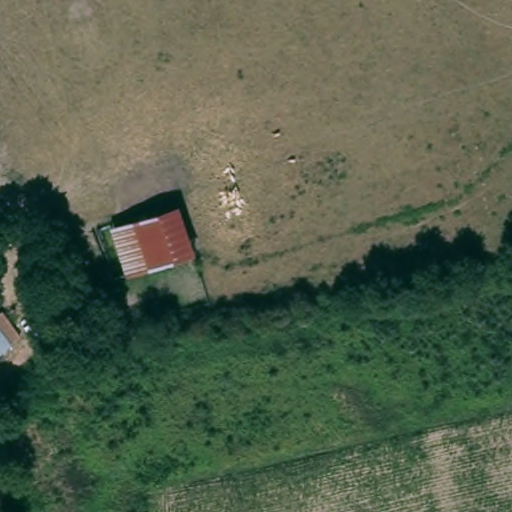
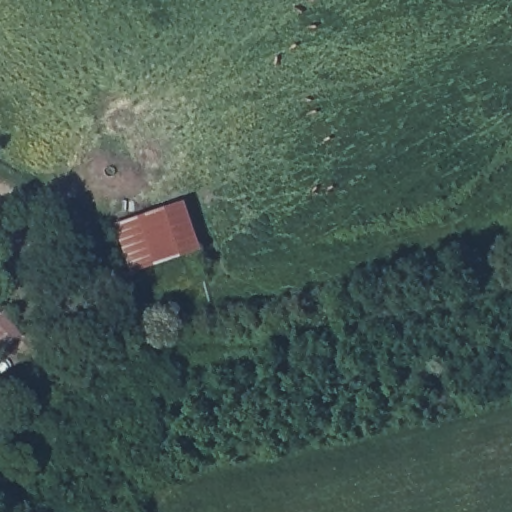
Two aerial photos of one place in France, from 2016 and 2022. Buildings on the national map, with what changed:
unchanged [(179,207),(194,251),(130,276),(111,231),(179,207)]
unchanged [(0,349),(0,318),(15,336),(0,349)]

